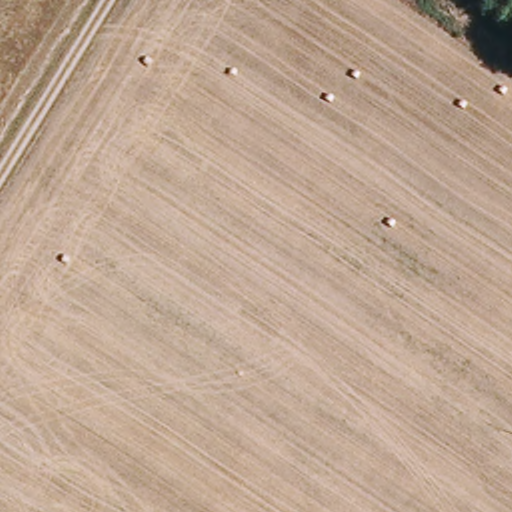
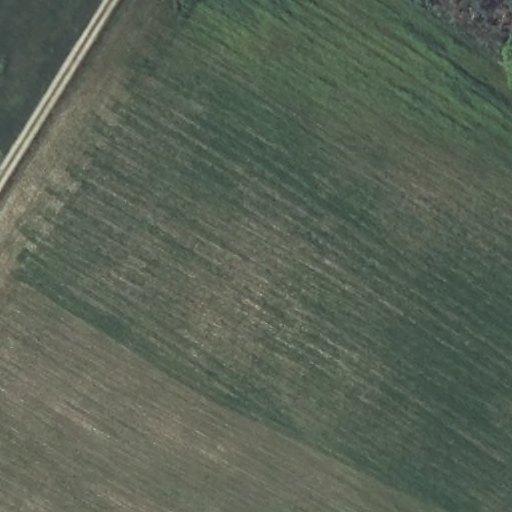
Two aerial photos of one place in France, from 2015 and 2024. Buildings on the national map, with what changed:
[]

